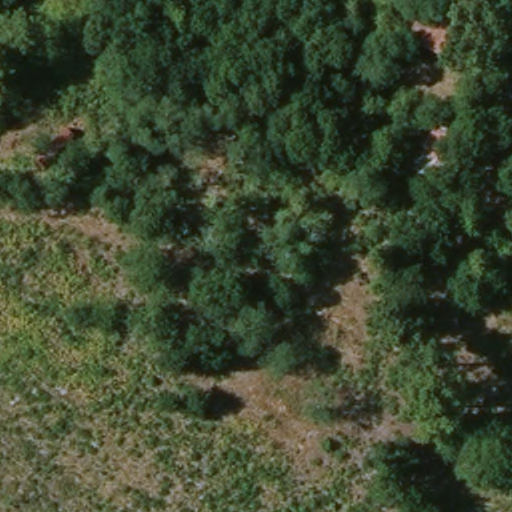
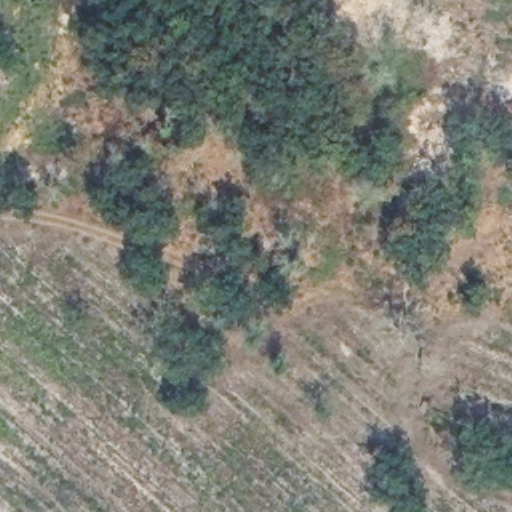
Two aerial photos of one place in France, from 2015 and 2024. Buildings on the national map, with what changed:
unchanged [(401,46),(413,12),(457,29),(445,62),(401,46)]
unchanged [(46,176),(34,164),(65,131),(78,142),(46,176)]

